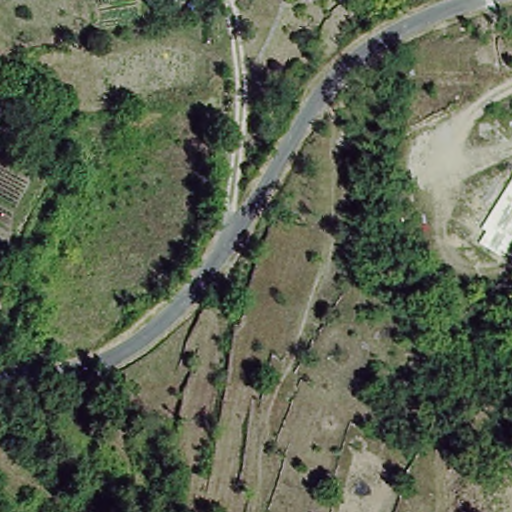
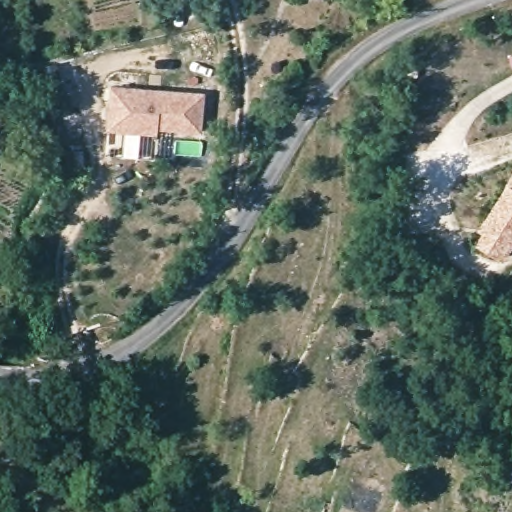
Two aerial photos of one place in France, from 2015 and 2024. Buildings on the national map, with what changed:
new [(205,93),(202,134),(157,130),(157,135),(106,131),(110,85),(205,93)]
new [(503,260),(475,244),(484,231),(478,228),(512,173),(512,246),(503,260)]

